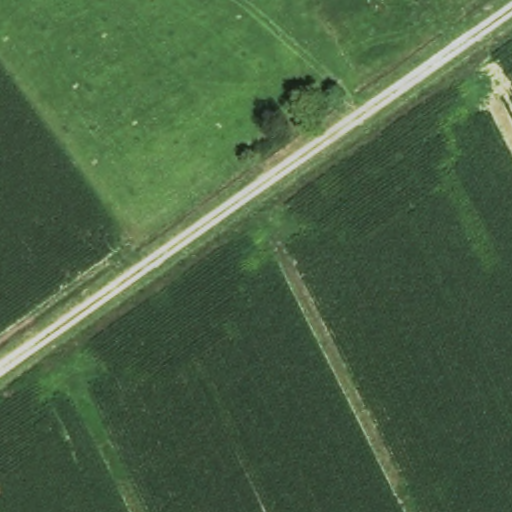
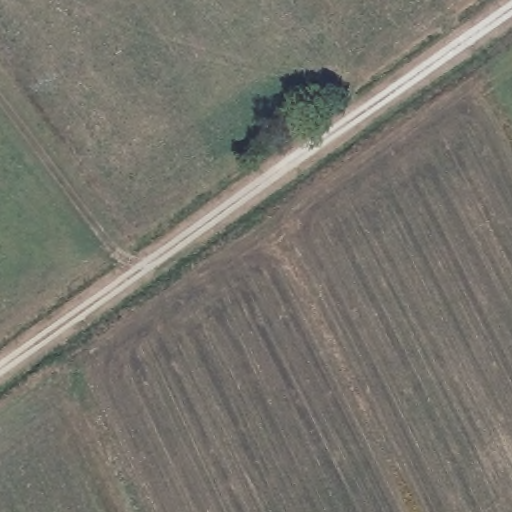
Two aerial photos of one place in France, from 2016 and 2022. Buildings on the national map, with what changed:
[]

